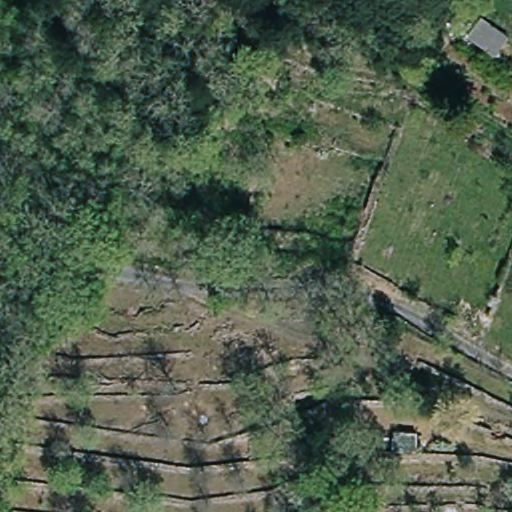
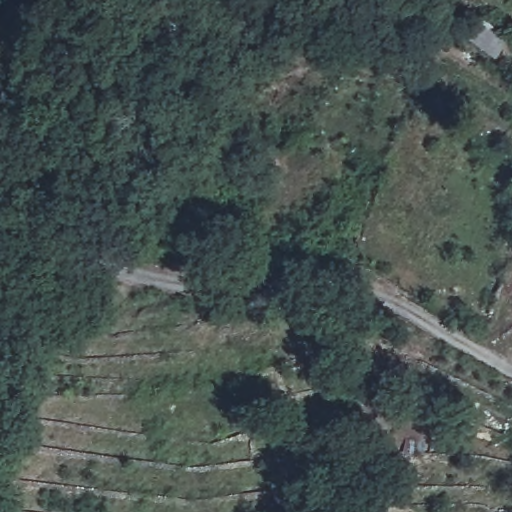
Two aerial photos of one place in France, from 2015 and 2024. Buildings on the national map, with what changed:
unchanged [(484,19),(512,36),(500,57),(472,39),(484,19)]

